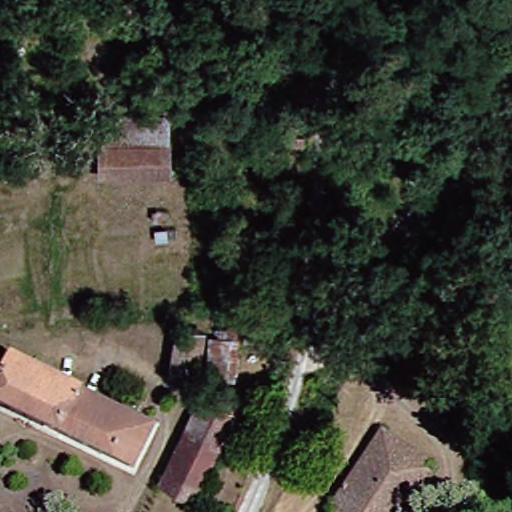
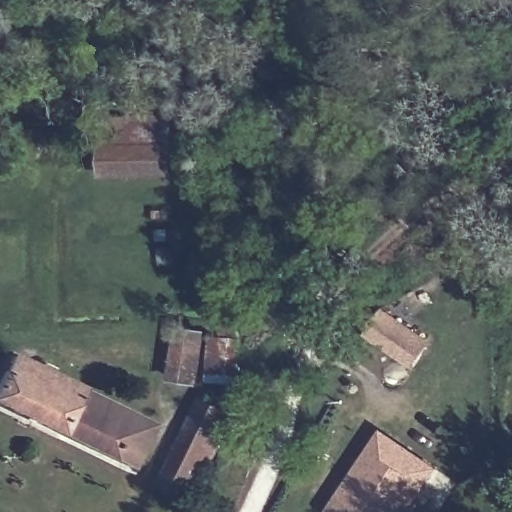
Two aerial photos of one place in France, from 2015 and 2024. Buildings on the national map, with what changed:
unchanged [(161,170),(102,167),(102,120),(163,118),(161,170)]
demolished [(365,341),(377,317),(429,340),(416,365),(371,344),(365,341)]
unchanged [(200,372),(169,368),(174,335),(197,339),(203,340),(200,372)]
unchanged [(127,467),(0,405),(0,369),(6,356),(40,371),(44,366),(62,375),(59,380),(145,421),(127,467)]
unchanged [(155,481),(163,466),(193,399),(209,406),(217,389),(234,396),(197,480),(190,496),(155,481)]
unchanged [(335,495),(377,431),(432,466),(411,501),(404,511),(407,512),(333,512),(327,508),(335,495)]

